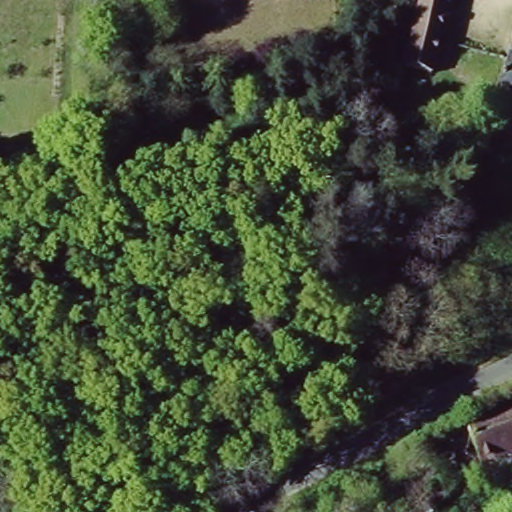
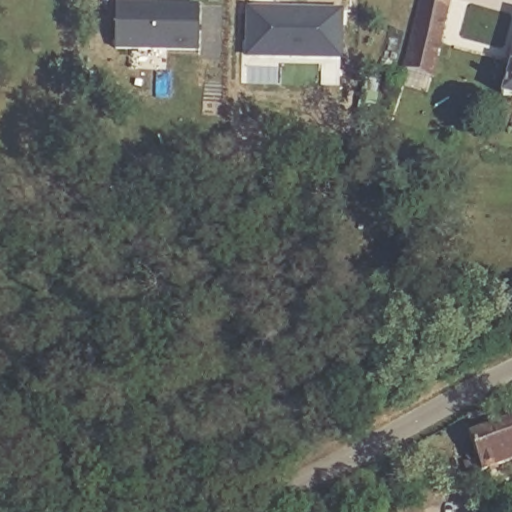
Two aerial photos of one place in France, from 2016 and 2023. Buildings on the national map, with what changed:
new [(198,6),(198,50),(115,48),(116,0),(155,0),(155,5),(198,6)]
unchanged [(446,6),(425,83),(406,78),(404,84),(394,82),(398,70),(414,0),(443,0),(442,5),(446,6)]
new [(344,61),(246,59),(248,7),(346,10),(344,61)]
unchanged [(512,48),(512,102),(497,98),(512,48)]
unchanged [(471,472),(477,470),(472,456),(479,453),(474,440),(512,426),(512,467),(474,481),(471,472)]

